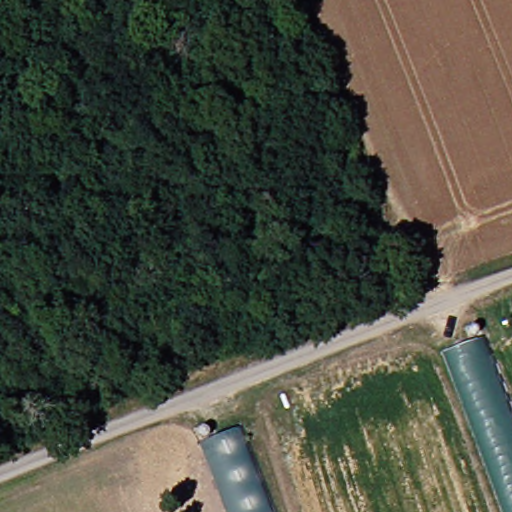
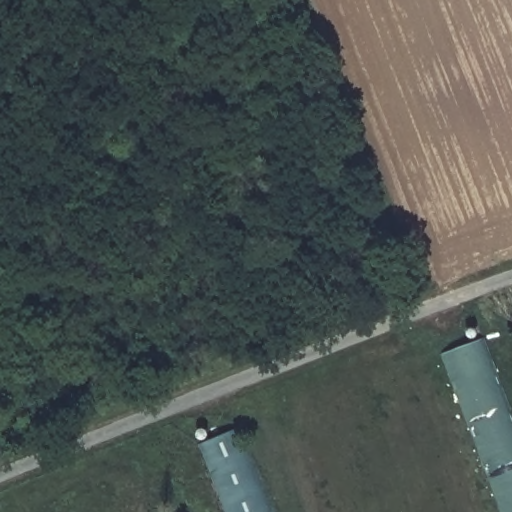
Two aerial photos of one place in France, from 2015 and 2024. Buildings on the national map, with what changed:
unchanged [(490,342),(512,399),(512,511),(453,355),(490,342)]
unchanged [(212,445),(245,430),(278,512),(237,512),(212,445)]

